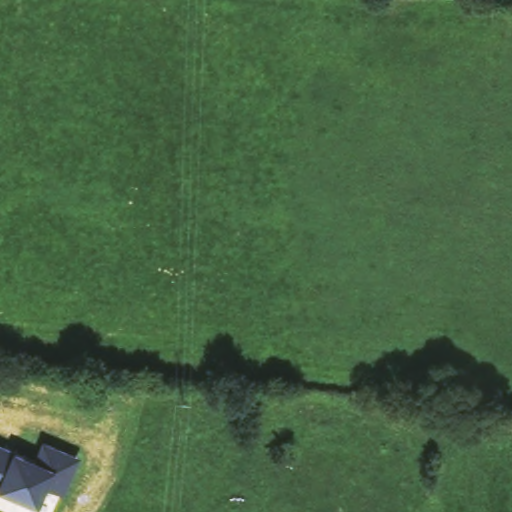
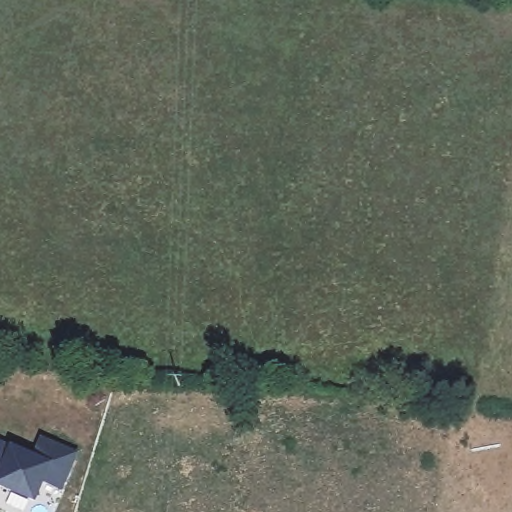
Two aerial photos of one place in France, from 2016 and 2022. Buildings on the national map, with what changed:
unchanged [(34,458),(42,438),(79,454),(63,493),(45,486),(37,504),(0,489),(0,444),(34,458)]

